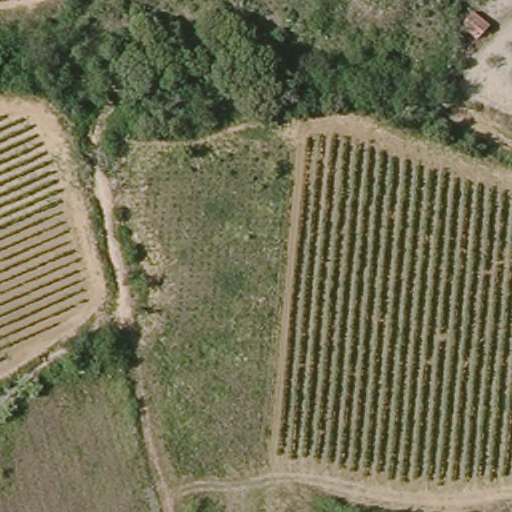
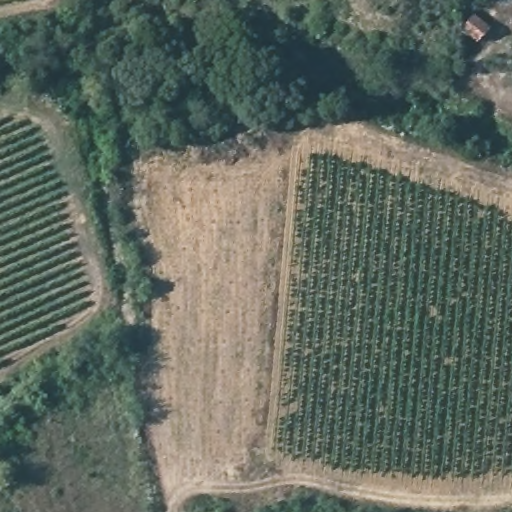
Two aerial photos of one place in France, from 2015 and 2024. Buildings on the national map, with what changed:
unchanged [(467,19),(484,19),(480,38),(464,36),(467,19)]

